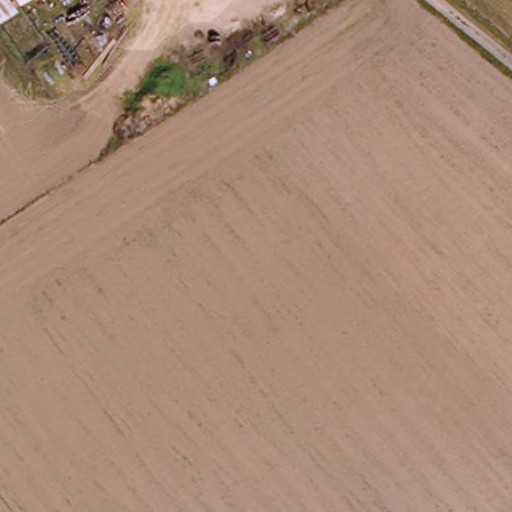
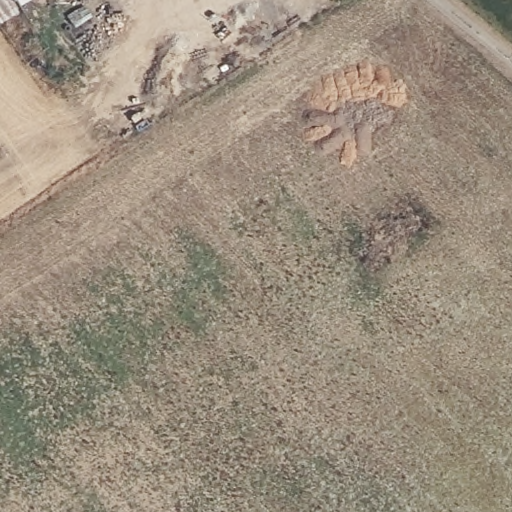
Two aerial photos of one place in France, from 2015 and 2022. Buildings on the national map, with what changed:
unchanged [(0,19),(0,0),(10,0),(20,15),(5,26),(0,19)]

